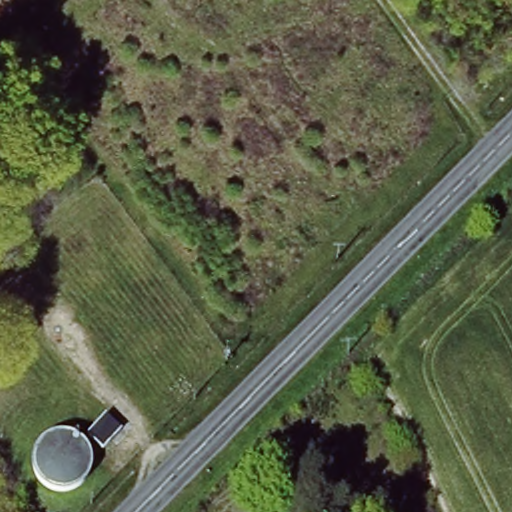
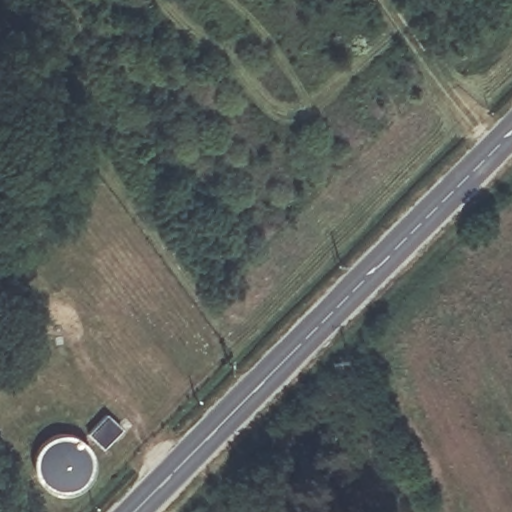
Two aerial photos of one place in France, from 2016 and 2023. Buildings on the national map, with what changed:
unchanged [(112,425),(96,440),(83,426),(100,409),(112,425)]

